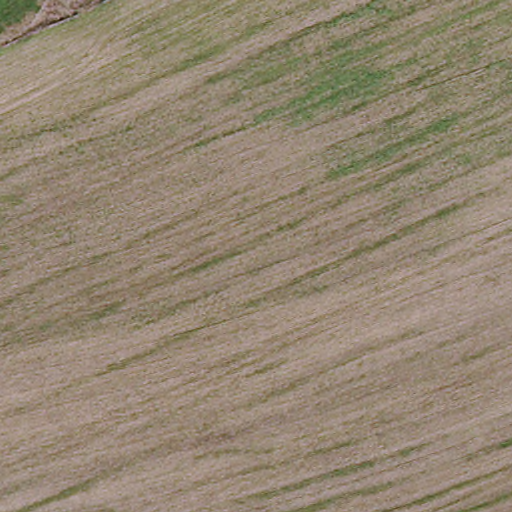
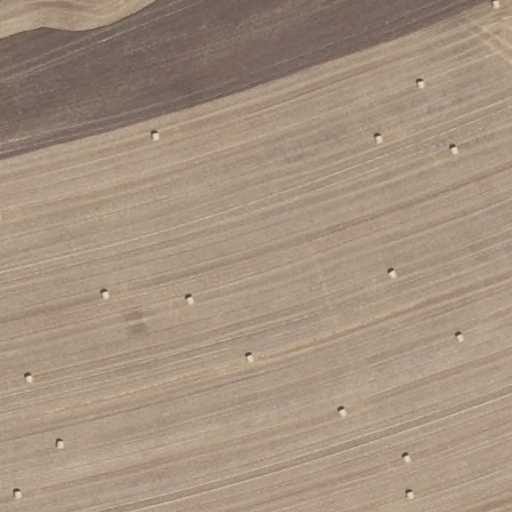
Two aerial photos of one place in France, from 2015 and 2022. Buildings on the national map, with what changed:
[]

